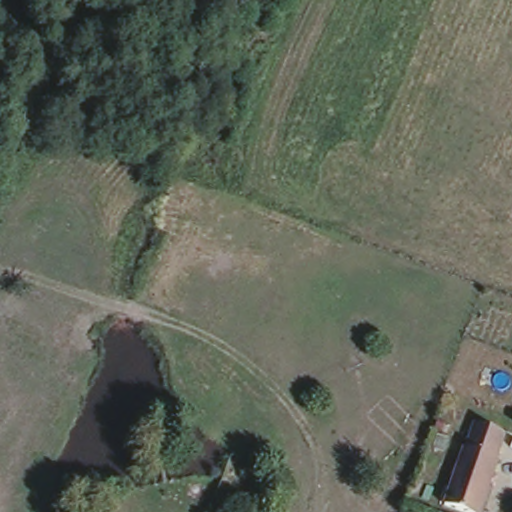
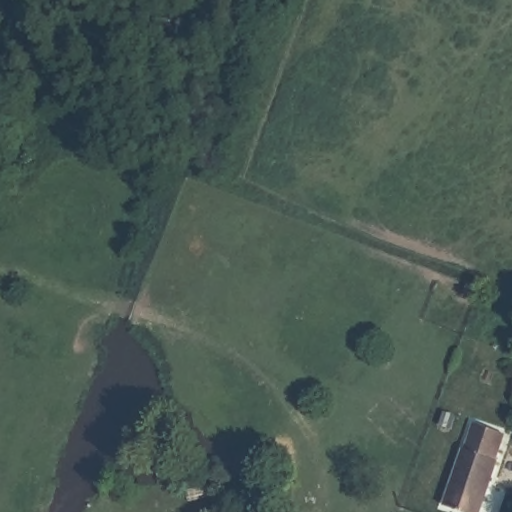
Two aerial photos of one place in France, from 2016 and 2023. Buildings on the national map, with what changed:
unchanged [(500,430),(487,462),(493,464),(475,512),(437,500),(454,449),(460,451),(471,420),(500,430)]

